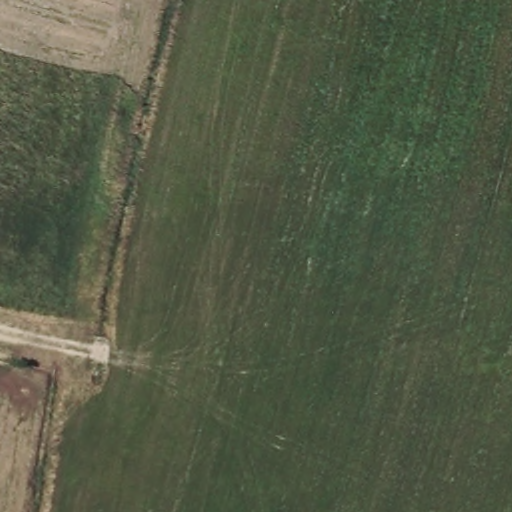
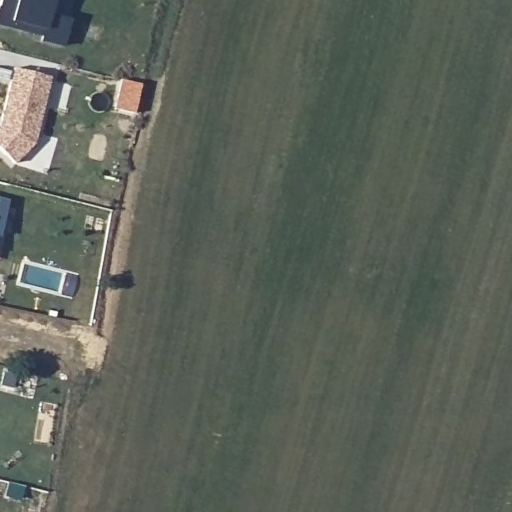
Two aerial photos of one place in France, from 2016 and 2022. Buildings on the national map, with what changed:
new [(0,7),(2,0),(17,0),(53,0),(50,14),(71,19),(64,46),(43,40),(44,35),(23,30),(0,24),(0,7)]
new [(15,68),(51,77),(35,143),(16,163),(0,149),(0,125),(1,124),(15,68)]
new [(0,234),(0,199),(9,201),(0,234)]

